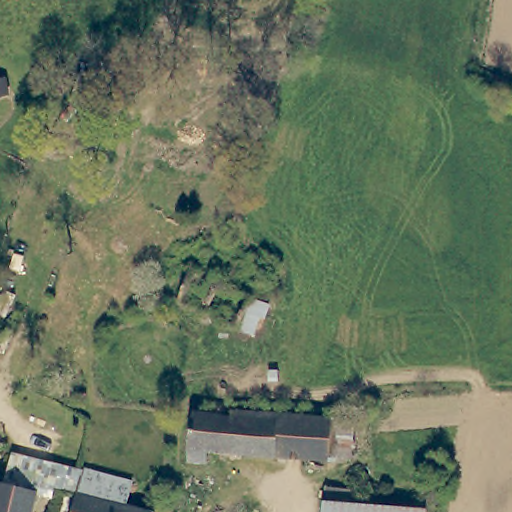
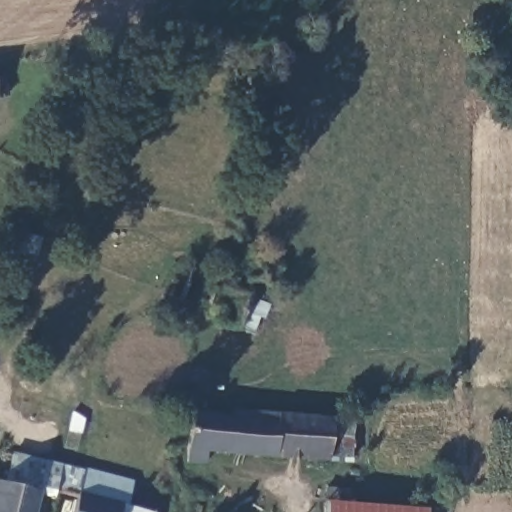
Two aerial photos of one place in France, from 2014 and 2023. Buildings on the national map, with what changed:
unchanged [(0,100),(0,81),(2,100),(0,100)]
unchanged [(357,462),(334,461),(210,455),(210,466),(190,465),(193,413),(203,415),(226,416),(226,412),(285,415),(312,417),(336,420),(360,421),(357,462)]
unchanged [(5,486),(12,457),(79,475),(75,493),(55,488),(51,500),(37,496),(33,512),(0,512),(0,485),(5,486)]
unchanged [(69,512),(75,493),(79,475),(80,470),(130,483),(124,505),(148,512),(69,512)]
unchanged [(423,512),(327,512),(327,500),(349,501),(423,505),(423,512)]

